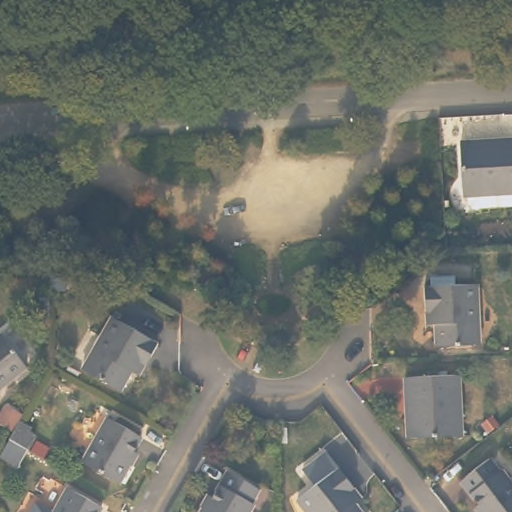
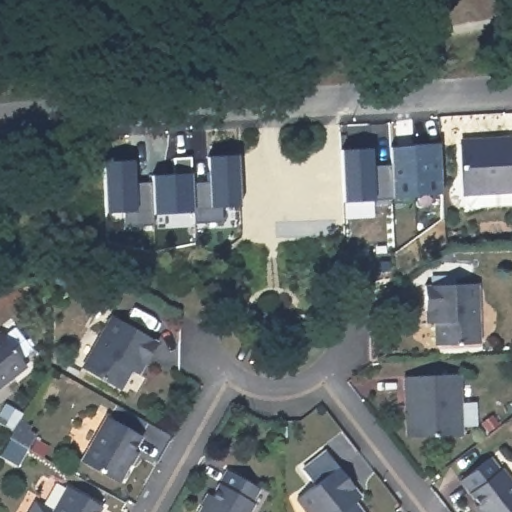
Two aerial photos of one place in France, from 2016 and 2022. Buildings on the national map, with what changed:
unchanged [(475,195),(471,197),(466,196),(462,192),(462,184),(459,184),(456,134),(481,132),(481,129),(512,128),(512,194),(475,195)]
new [(342,202),(340,149),(371,147),(372,165),(391,164),(392,199),(374,199),(374,201),(342,202)]
new [(125,227),(124,212),(106,213),(104,161),(133,159),(134,184),(150,183),(150,175),(192,174),(193,184),(209,182),(207,155),(237,153),(241,206),(221,207),(223,222),(194,224),(193,211),(153,215),(154,225),(125,227)]
unchanged [(512,199),(512,214),(510,215),(510,200),(512,199)]
unchanged [(422,283),(474,280),(478,340),(436,343),(434,320),(430,321),(429,310),(424,310),(422,283)]
unchanged [(132,369),(130,368),(119,386),(81,365),(110,313),(155,338),(142,360),(136,371),(132,369)]
unchanged [(29,365),(0,388),(0,334),(3,332),(29,365)]
unchanged [(453,367),(458,427),(409,431),(407,405),(402,405),(400,370),(453,367)]
unchanged [(139,435),(130,449),(134,451),(117,480),(81,458),(105,415),(139,435)]
unchanged [(0,452),(10,435),(13,430),(17,423),(20,417),(31,425),(27,430),(36,435),(29,446),(28,445),(18,463),(0,452)]
unchanged [(492,470),(494,467),(512,490),(512,512),(477,512),(471,505),(473,503),(454,479),(482,456),(492,470)]
unchanged [(350,488),(359,498),(355,501),(365,512),(311,512),(299,496),(338,466),(354,485),(350,488)]
unchanged [(250,501),(252,503),(248,512),(197,512),(207,493),(211,495),(217,485),(225,471),(244,481),(257,488),(250,501)]
unchanged [(59,511),(73,486),(106,506),(103,512),(33,512),(40,500),(59,511)]

